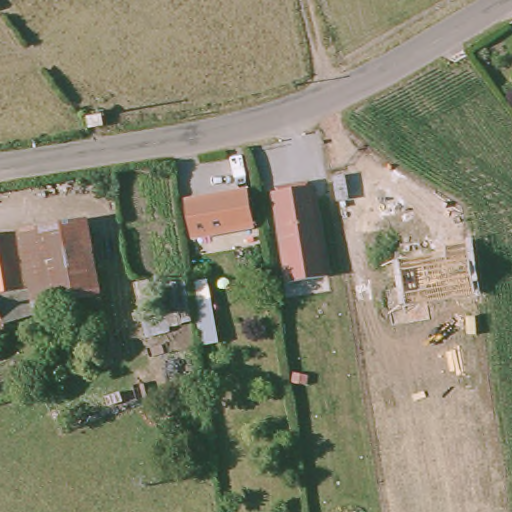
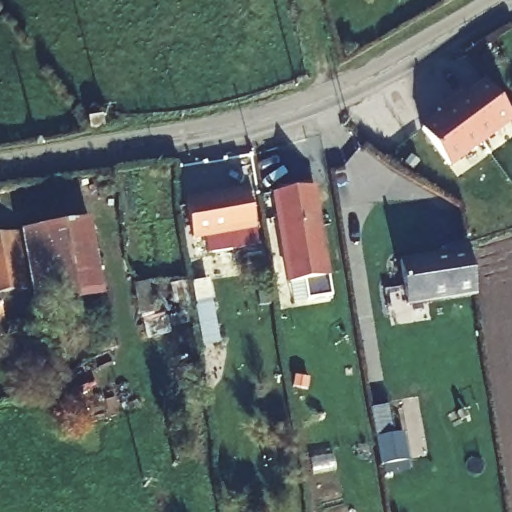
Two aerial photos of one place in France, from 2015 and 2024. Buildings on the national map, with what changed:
new [(422,129),(486,79),(512,117),(512,123),(451,168),(422,129)]
unchanged [(155,108),(166,106),(167,115),(155,116),(155,108)]
unchanged [(330,282),(295,287),(282,198),(285,198),(284,193),(314,189),(314,194),(317,193),(330,282)]
unchanged [(224,205),(249,200),(254,233),(229,237),(192,244),(187,211),(224,205)]
unchanged [(80,220),(95,295),(45,304),(32,229),(80,220)]
unchanged [(16,273),(20,294),(0,300),(0,235),(10,234),(16,273)]
unchanged [(439,263),(437,254),(460,252),(469,303),(400,313),(393,269),(427,264),(439,263)]
unchanged [(0,329),(0,303),(7,328),(0,329)]

